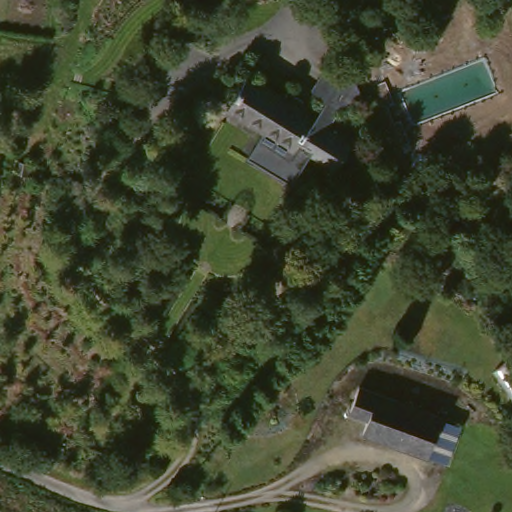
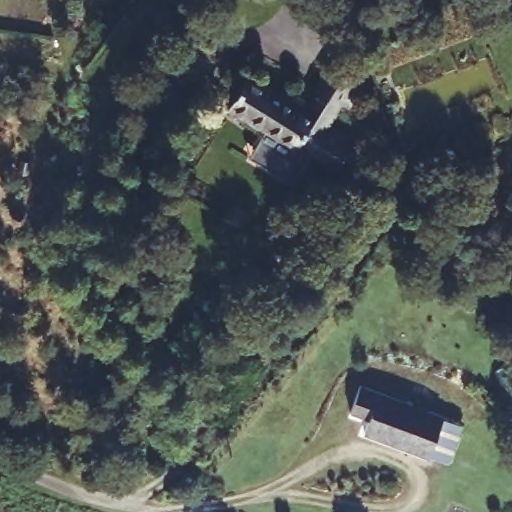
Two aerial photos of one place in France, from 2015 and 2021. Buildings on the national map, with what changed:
unchanged [(339,111),(327,130),(351,147),(334,173),(311,157),(291,188),(259,164),(263,158),(249,149),(257,135),(222,109),(246,73),(279,97),(284,89),(314,109),(318,99),(306,91),(324,64),(353,83),(362,101),(351,118),(339,111)]
unchanged [(459,427),(442,469),(357,436),(361,422),(339,415),(349,386),(459,427)]

